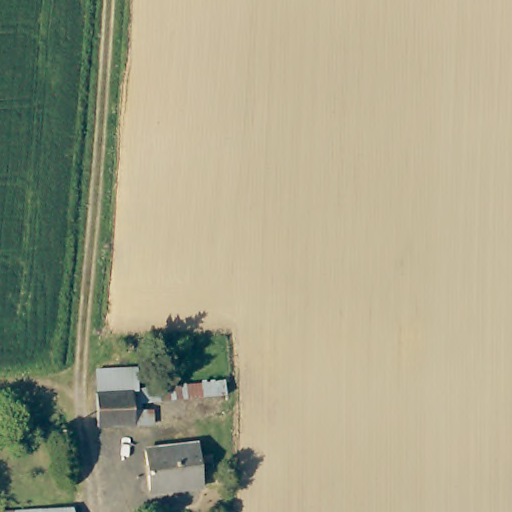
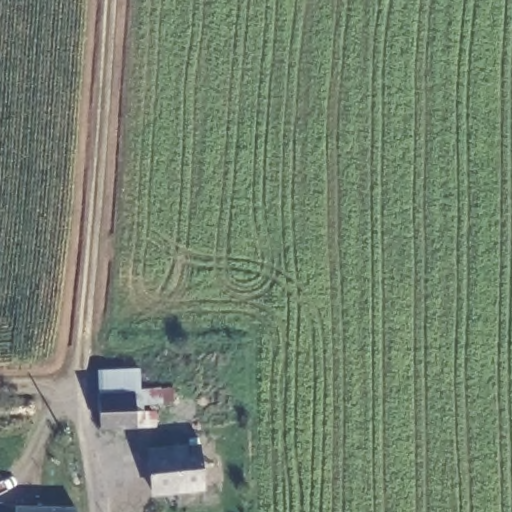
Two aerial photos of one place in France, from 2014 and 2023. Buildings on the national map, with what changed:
unchanged [(97,368),(136,366),(140,387),(154,387),(156,403),(156,426),(99,429),(97,368)]
unchanged [(179,491),(179,488),(150,490),(147,448),(195,443),(199,490),(179,491)]
unchanged [(74,505),(76,512),(0,512),(0,507),(74,505)]

